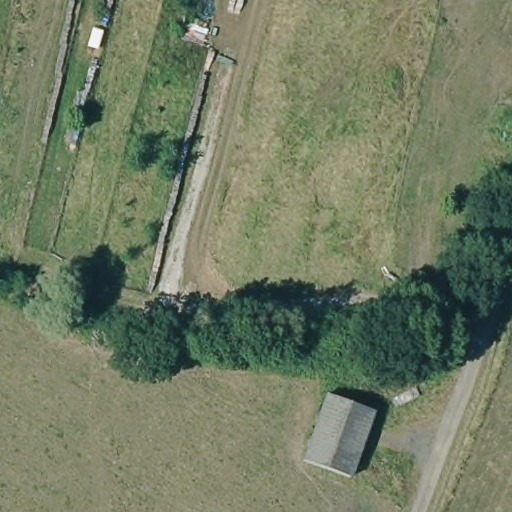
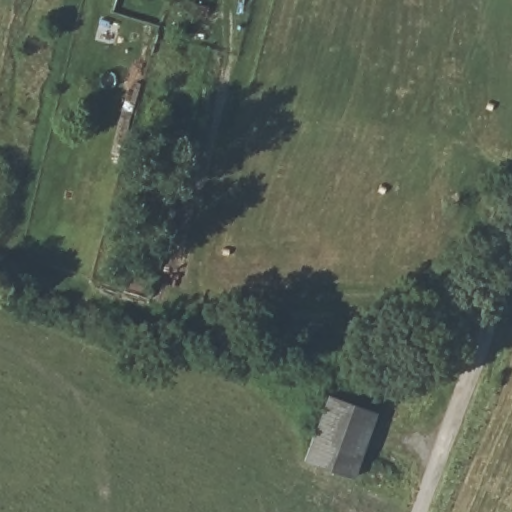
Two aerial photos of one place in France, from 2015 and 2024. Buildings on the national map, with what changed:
unchanged [(350,478),(305,460),(328,394),(373,411),(350,478)]

